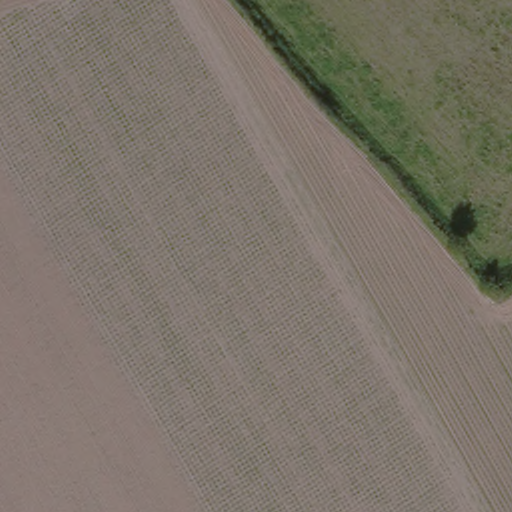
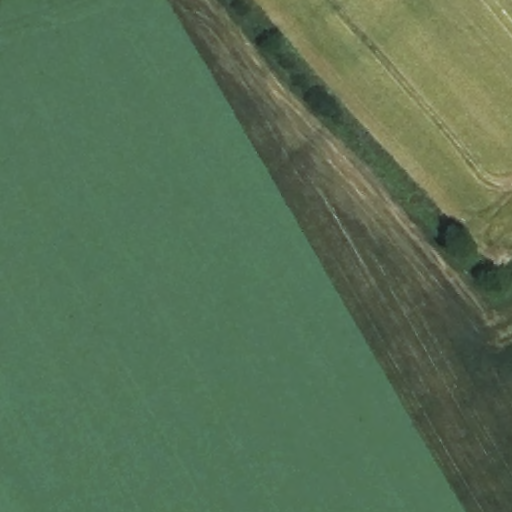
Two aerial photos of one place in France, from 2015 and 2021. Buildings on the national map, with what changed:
[]

